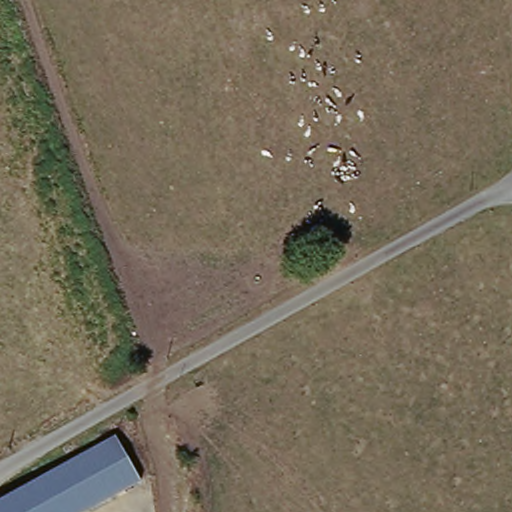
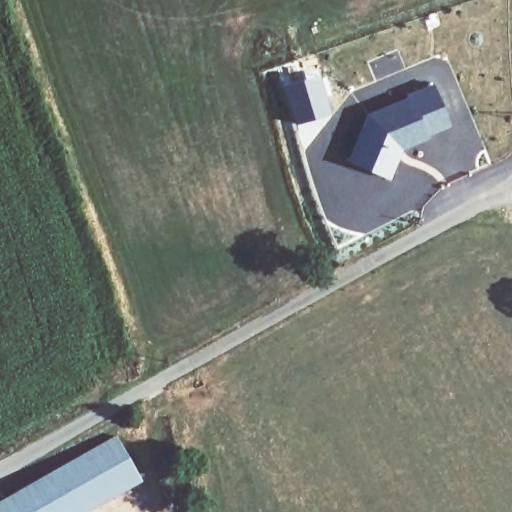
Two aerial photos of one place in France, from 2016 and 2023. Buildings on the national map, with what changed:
new [(370,111),(412,95),(411,92),(437,82),(454,123),(431,133),(432,135),(399,148),(402,155),(391,176),(350,158),(370,111)]
unchanged [(118,434),(143,479),(86,512),(0,512),(0,502),(118,434)]

